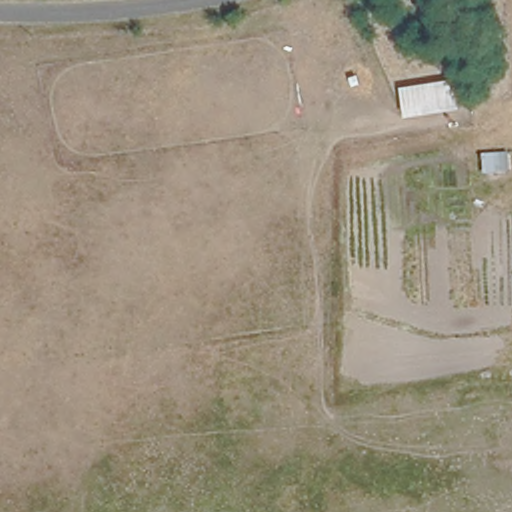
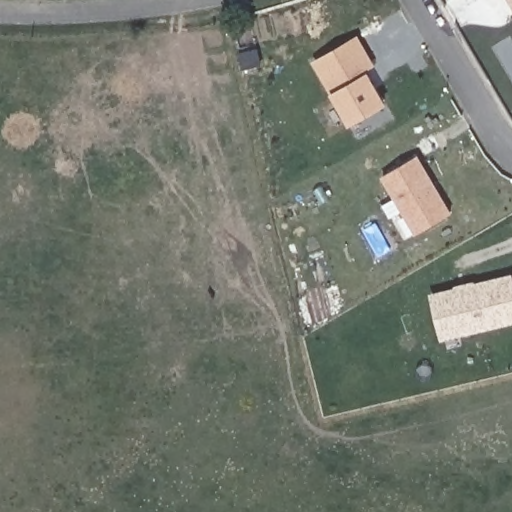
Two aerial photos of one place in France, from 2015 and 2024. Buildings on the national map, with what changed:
new [(505,0),(512,0),(512,13),(505,0)]
new [(355,35),(372,65),(361,72),(381,103),(341,124),(309,60),(355,35)]
demolished [(455,71),(459,105),(401,115),(399,84),(455,71)]
new [(414,156),(446,211),(411,232),(378,176),(414,156)]
new [(510,272),(512,282),(512,321),(437,338),(427,292),(510,272)]

